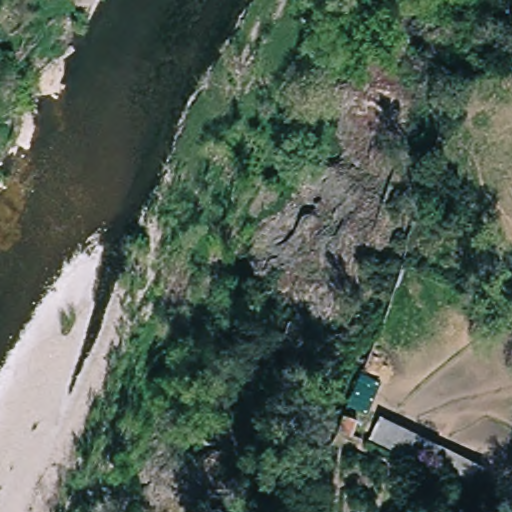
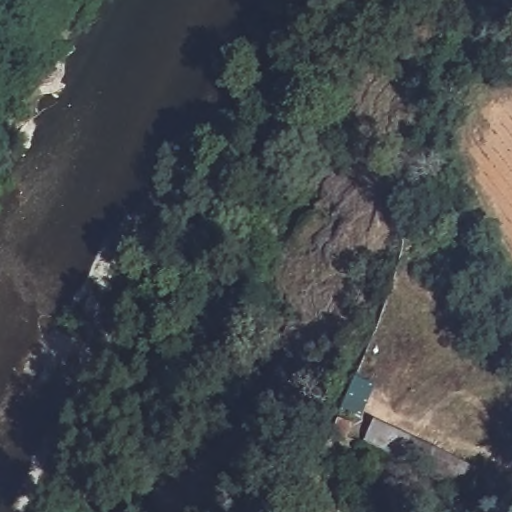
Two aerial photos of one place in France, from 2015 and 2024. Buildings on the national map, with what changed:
unchanged [(475,486),(363,439),(375,417),(483,466),(475,486)]

